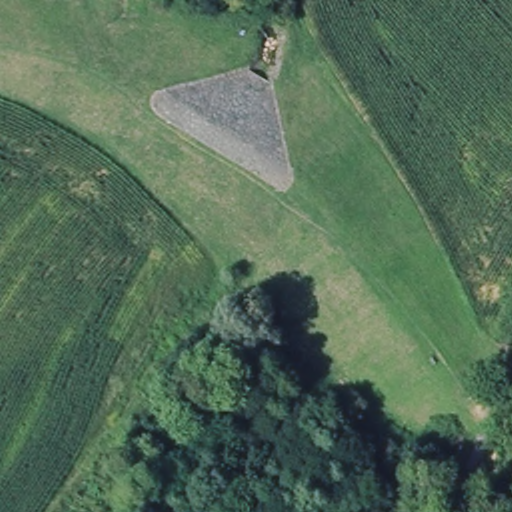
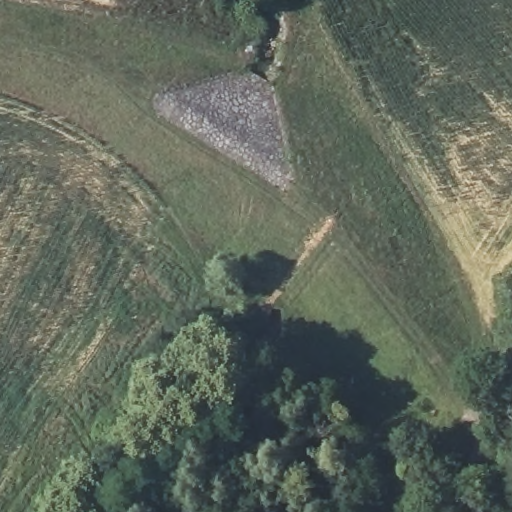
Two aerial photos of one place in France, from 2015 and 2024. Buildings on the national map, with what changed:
[]

